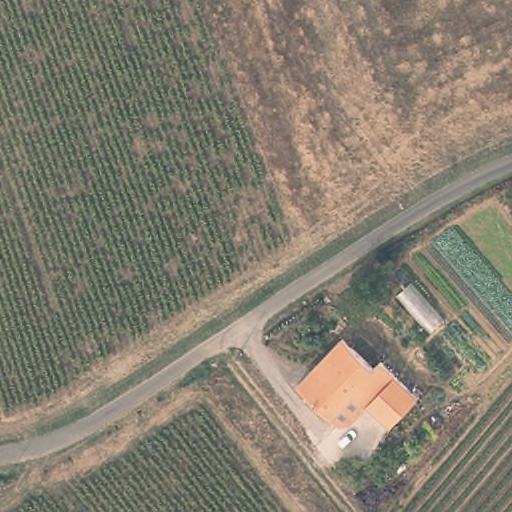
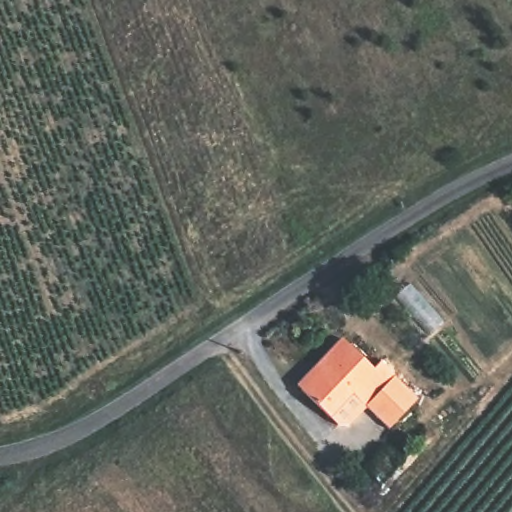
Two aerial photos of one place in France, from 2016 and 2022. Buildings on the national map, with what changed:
unchanged [(373,366),(379,360),(416,396),(387,425),(350,390),(327,414),(299,386),(296,383),(314,364),(341,337),(373,366)]
unchanged [(394,469),(378,485),(363,469),(378,452),(394,469)]

